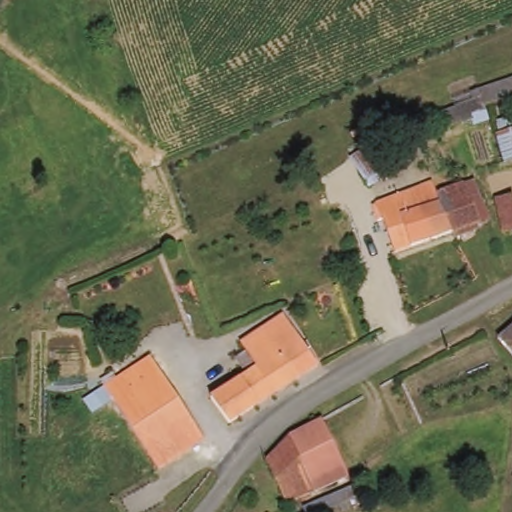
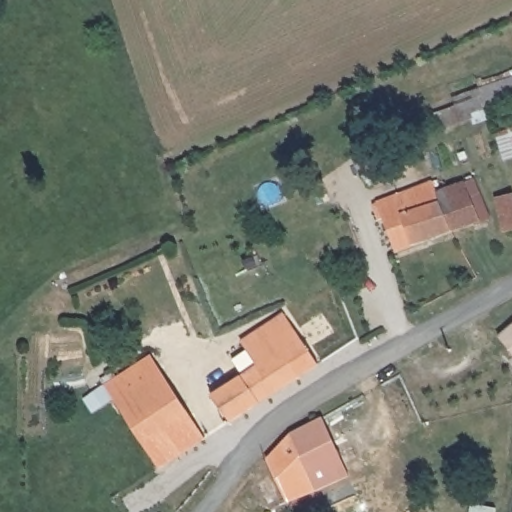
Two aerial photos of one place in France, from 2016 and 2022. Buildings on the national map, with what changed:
unchanged [(435,125),(433,116),(483,98),(480,89),(512,78),(512,97),(485,107),(488,118),(439,135),(435,125)]
unchanged [(502,160),(496,135),(512,130),(512,157),(502,160)]
unchanged [(358,162),(387,141),(403,162),(407,168),(378,189),(372,180),(358,162)]
unchanged [(471,185),(486,221),(462,230),(447,196),(471,185)]
unchanged [(407,252),(396,221),(390,223),(385,210),(443,187),(447,196),(462,230),(407,252)]
unchanged [(511,234),(508,222),(501,201),(512,198),(512,234),(511,234)]
unchanged [(219,402),(263,370),(245,345),(272,326),(285,317),(320,367),(305,377),(235,426),(219,402)]
unchanged [(501,339),(512,330),(512,352),(501,339)]
unchanged [(210,438),(165,468),(120,400),(100,413),(99,414),(90,401),(97,395),(110,386),(155,356),(210,438)]
unchanged [(338,504),(321,512),(311,512),(303,495),(319,487),(295,432),(326,416),(362,492),(338,504)]
unchanged [(276,469),(270,458),(295,432),(319,487),(303,495),(292,501),(276,469)]

